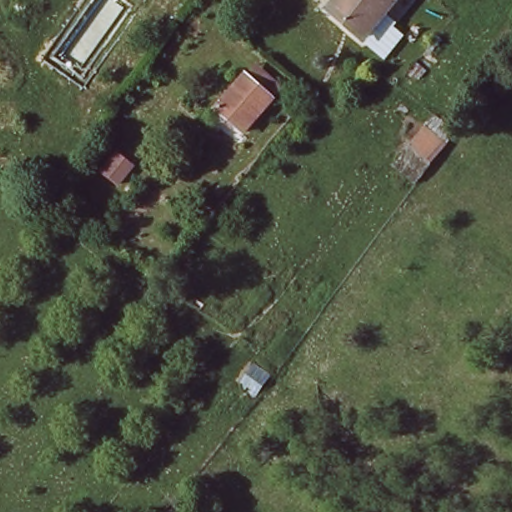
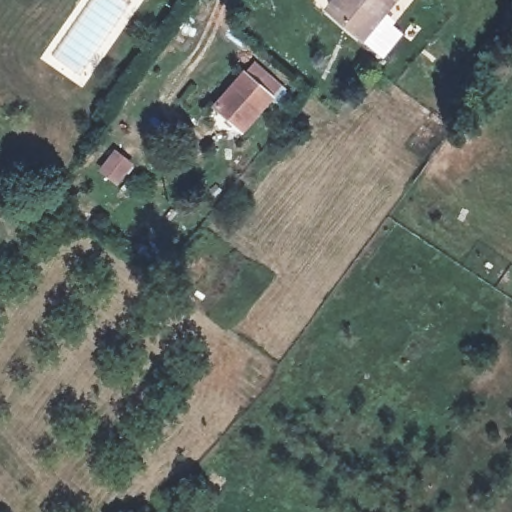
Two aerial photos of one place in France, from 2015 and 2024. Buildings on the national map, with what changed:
unchanged [(381,24),(399,39),(381,59),(324,9),(331,0),(396,0),(381,24)]
unchanged [(271,99),(243,136),(218,112),(244,75),(271,99)]
unchanged [(429,113),(453,129),(417,181),(393,162),(429,113)]
unchanged [(116,189),(90,166),(101,154),(133,170),(116,189)]

